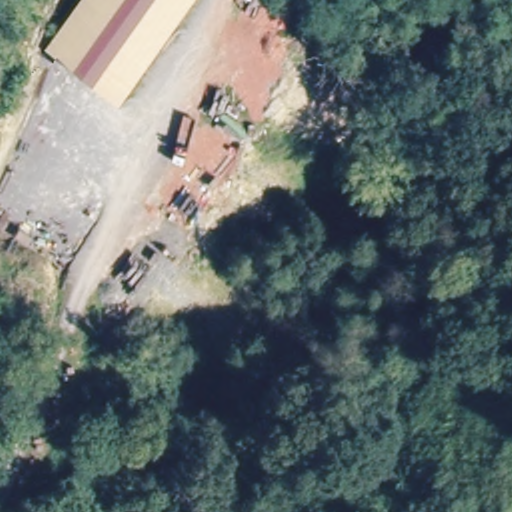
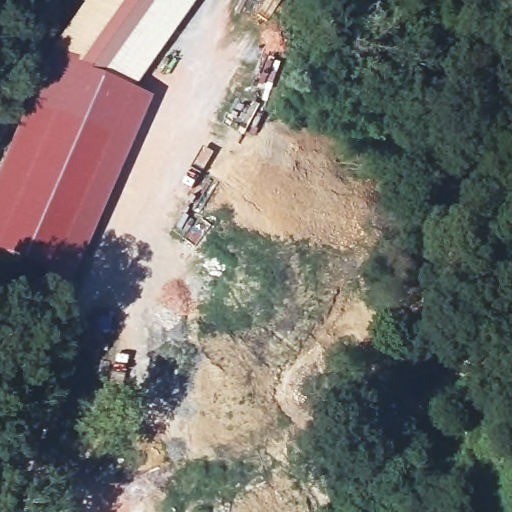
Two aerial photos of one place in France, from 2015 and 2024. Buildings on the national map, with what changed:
unchanged [(85,0),(197,0),(121,107),(48,54),(85,0)]
new [(72,282),(0,249),(0,167),(48,54),(121,107),(133,91),(151,99),(72,282)]

